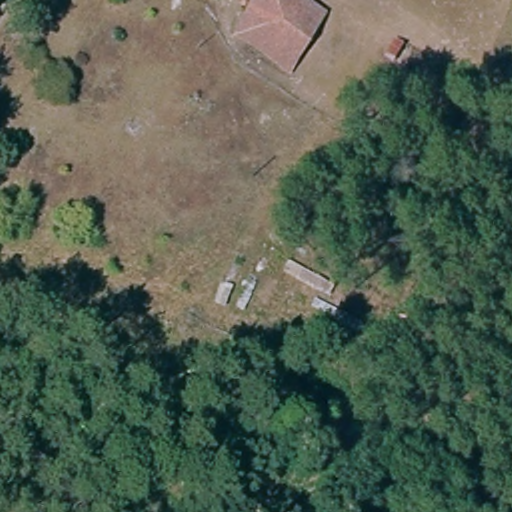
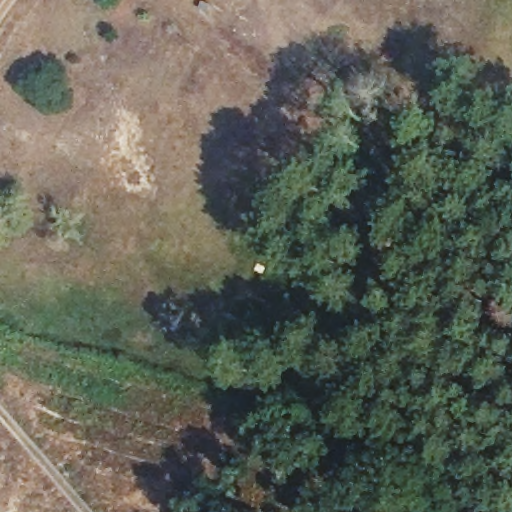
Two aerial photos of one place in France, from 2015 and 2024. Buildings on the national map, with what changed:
unchanged [(199,0),(198,1),(194,0),(199,0)]
demolished [(224,35),(248,0),(295,0),(318,15),(282,69),(238,43),(224,35)]

